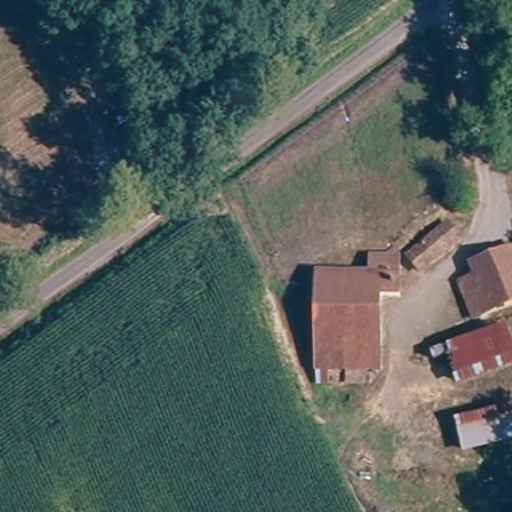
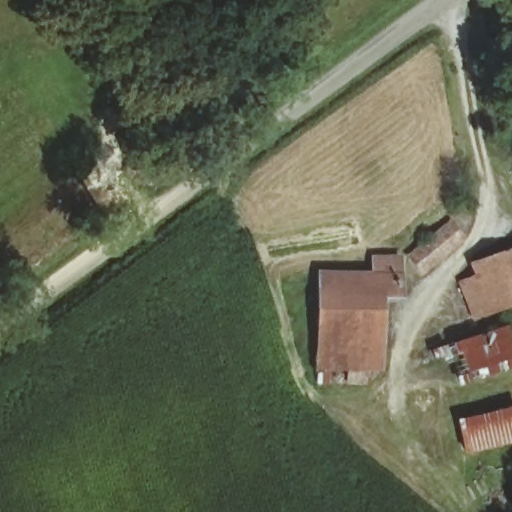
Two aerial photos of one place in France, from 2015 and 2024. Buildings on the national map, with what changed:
unchanged [(426,272),(413,256),(452,226),(465,242),(426,272)]
unchanged [(512,309),(468,324),(457,289),(478,282),(474,270),(512,258),(512,309)]
unchanged [(321,364),(327,271),(385,276),(386,263),(405,265),(402,301),(388,300),(384,368),(321,364)]
unchanged [(449,348),(510,325),(512,330),(512,370),(460,387),(449,348)]
unchanged [(458,421),(512,408),(512,446),(466,456),(458,421)]

